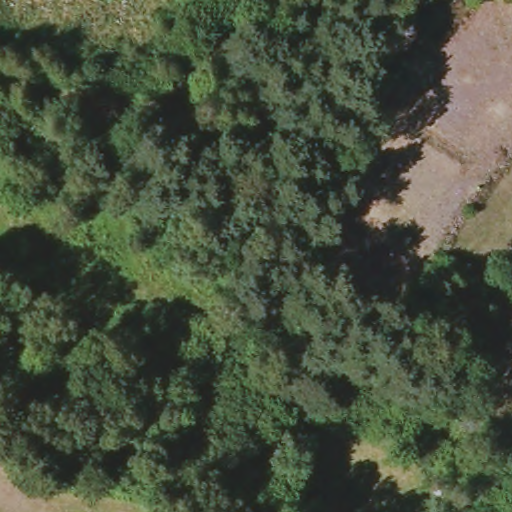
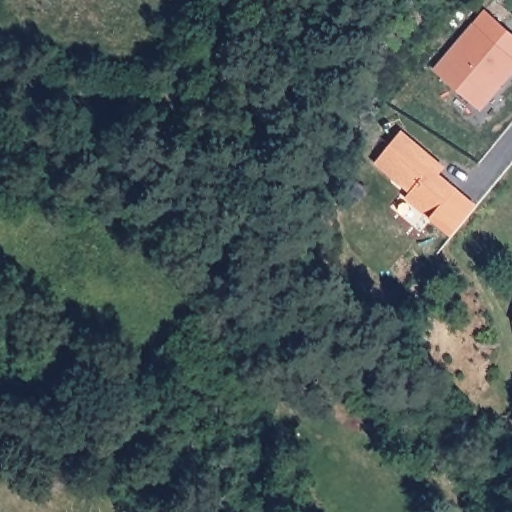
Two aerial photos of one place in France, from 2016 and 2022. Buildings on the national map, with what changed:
new [(434,69),(472,24),(512,58),(512,74),(482,111),(434,69)]
demolished [(417,159),(428,127),(460,139),(449,170),(417,159)]
new [(437,161),(445,168),(439,175),(477,206),(452,236),(406,197),(411,192),(375,162),(401,132),(437,161)]

